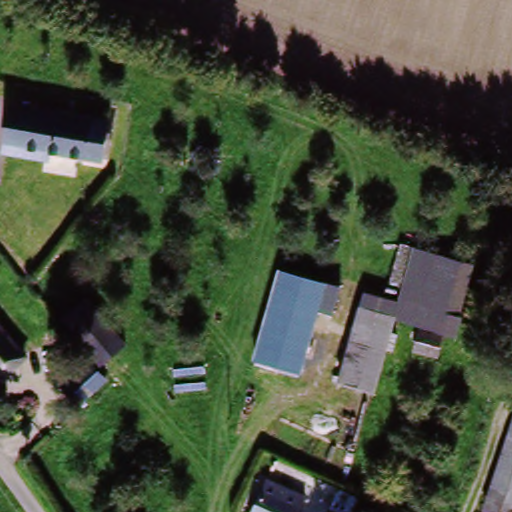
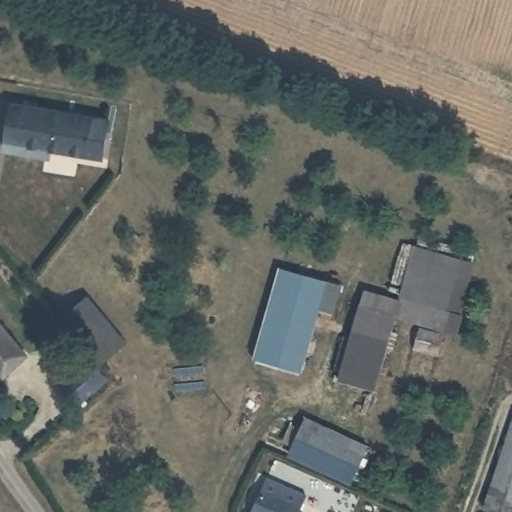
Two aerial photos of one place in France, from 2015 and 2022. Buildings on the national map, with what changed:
unchanged [(110,160),(58,148),(55,159),(3,145),(14,99),(23,101),(119,123),(110,160)]
unchanged [(363,299),(365,290),(397,299),(411,244),(482,265),(463,337),(444,333),(439,357),(414,352),(422,324),(402,319),(378,306),(369,301),(363,299)]
unchanged [(281,267),(331,280),(304,370),(255,357),(281,267)]
unchanged [(126,342),(96,368),(57,321),(87,296),(126,342)]
unchanged [(366,388),(334,370),(369,301),(402,319),(366,388)]
unchanged [(0,373),(0,321),(41,373),(15,392),(0,373)]
unchanged [(88,372),(98,388),(68,409),(53,387),(83,367),(88,372)]
unchanged [(502,512),(479,504),(512,405),(512,512),(502,512)]
new [(288,456),(293,445),(283,441),(292,421),(303,424),(306,416),(370,446),(351,484),(288,456)]
unchanged [(253,512),(273,473),(310,493),(301,512),(253,512)]

